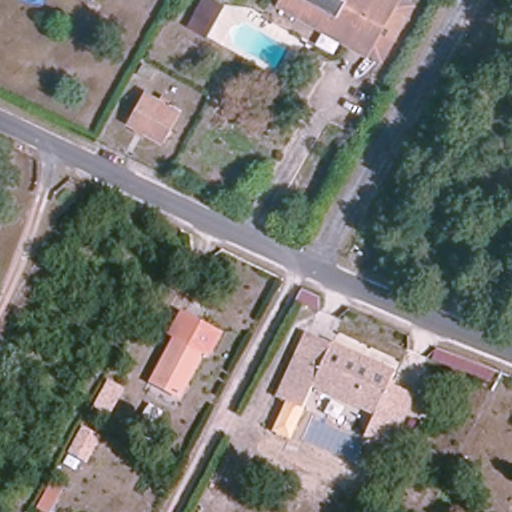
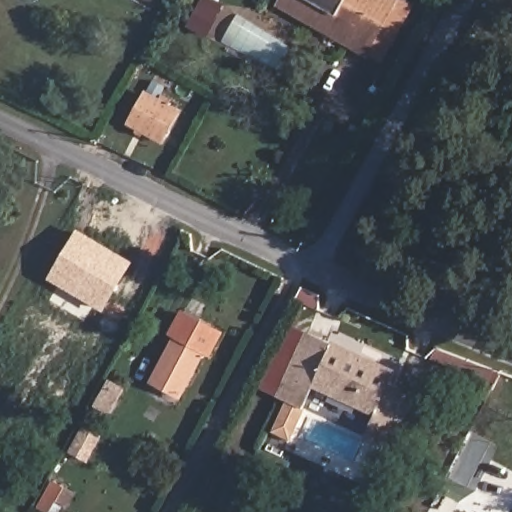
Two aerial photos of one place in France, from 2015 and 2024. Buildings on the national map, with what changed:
unchanged [(209,39),(189,28),(203,0),(216,0),(224,5),(209,39)]
unchanged [(355,46),(314,21),(315,17),(285,0),(286,0),(413,0),(407,9),(398,2),(384,28),(369,54),(355,46)]
unchanged [(174,112),(160,139),(130,124),(146,99),(174,112)]
new [(48,280),(76,230),(133,262),(104,313),(48,280)]
unchanged [(152,379),(177,335),(172,333),(184,310),(219,331),(209,351),(203,349),(179,394),(152,379)]
unchanged [(393,369),(387,381),(404,389),(411,393),(387,443),(378,439),(363,431),(374,409),(313,379),(303,401),(282,391),(312,330),(393,369)]
demolished [(123,468),(135,474),(128,487),(106,477),(114,453),(128,459),(123,468)]
unchanged [(38,512),(31,508),(47,477),(68,487),(56,512),(38,512)]

